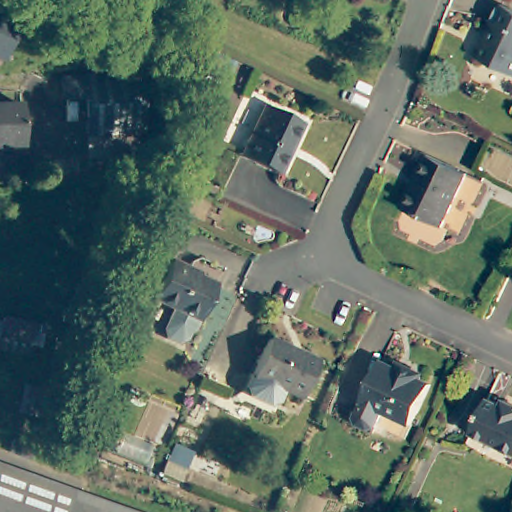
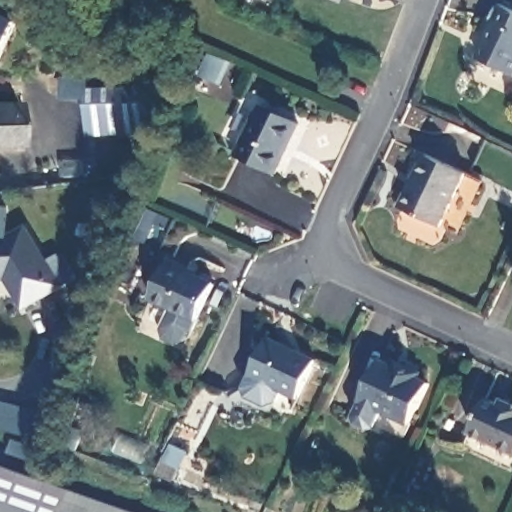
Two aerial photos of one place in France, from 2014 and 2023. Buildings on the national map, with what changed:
unchanged [(497,25),(492,23),(501,4),(512,10),(512,74),(481,59),(497,25)]
unchanged [(22,17),(4,55),(0,54),(0,8),(22,17)]
unchanged [(205,76),(214,55),(231,62),(222,83),(205,76)]
unchanged [(146,131),(147,155),(93,157),(90,97),(67,98),(66,75),(89,74),(148,71),(151,130),(146,131)]
unchanged [(21,103),(23,145),(0,146),(0,104),(21,103)]
unchanged [(240,156),(263,106),(302,124),(278,174),(240,156)]
unchanged [(467,174),(443,227),(405,209),(420,177),(417,176),(427,155),(467,174)]
new [(23,309),(5,279),(0,279),(0,234),(14,233),(29,223),(63,287),(23,309)]
unchanged [(200,320),(196,329),(191,332),(188,339),(179,343),(168,337),(165,329),(174,308),(155,299),(173,260),(192,269),(191,272),(217,284),(200,320)]
unchanged [(268,335),(300,350),(301,348),(318,356),(300,393),(282,385),(276,397),(268,400),(249,391),(246,383),(252,370),(268,335)]
unchanged [(412,425),(383,411),(375,427),(373,432),(352,422),(354,417),(381,360),(397,368),(399,362),(423,373),(420,379),(431,384),(412,425)]
unchanged [(489,398),(502,405),(505,399),(512,403),(512,452),(472,433),(489,398)]
new [(41,409),(33,438),(0,428),(0,402),(41,409)]
unchanged [(160,472),(165,460),(168,461),(176,445),(190,451),(176,480),(160,472)]
unchanged [(118,512),(0,512),(0,470),(118,512)]

